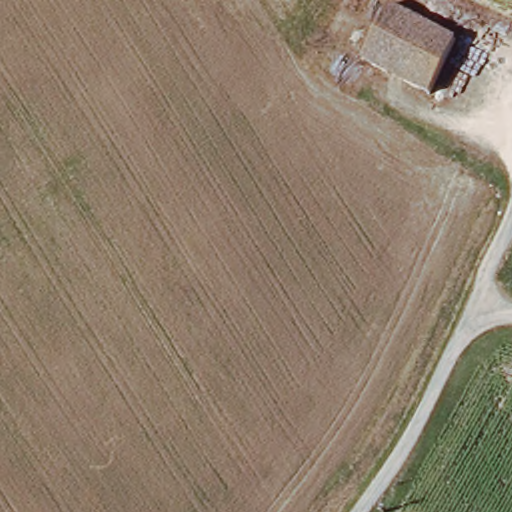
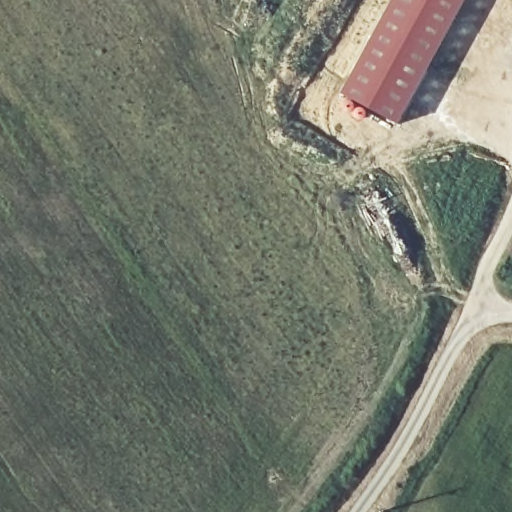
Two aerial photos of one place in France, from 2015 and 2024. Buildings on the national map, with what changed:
new [(391,0),(466,0),(399,125),(339,95),(391,0)]
demolished [(359,60),(390,6),(461,40),(432,94),(359,60)]

